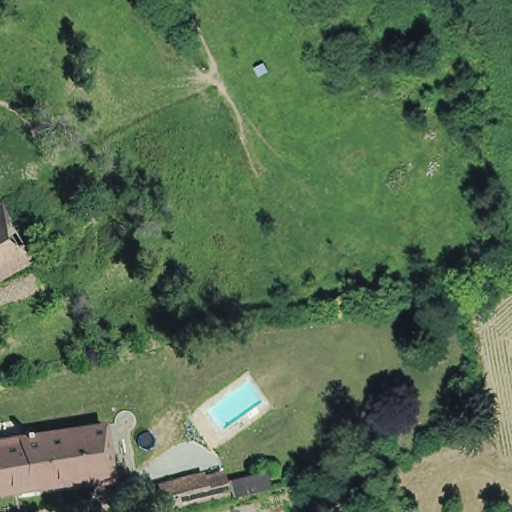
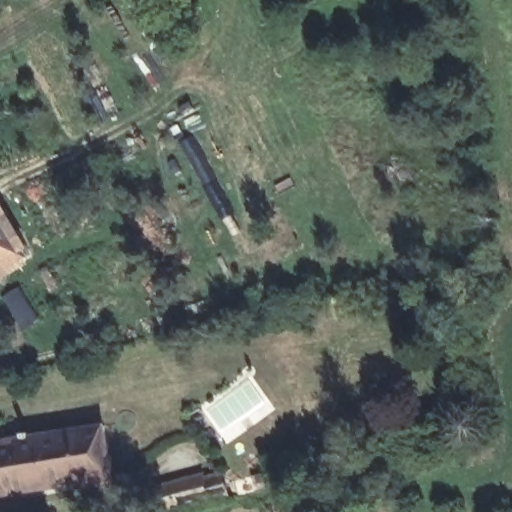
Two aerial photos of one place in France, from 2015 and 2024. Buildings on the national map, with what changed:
unchanged [(0,280),(0,207),(1,206),(31,264),(0,280)]
unchanged [(80,486),(0,501),(0,450),(105,430),(115,480),(116,485),(82,492),(80,486)]
unchanged [(166,479),(210,468),(211,472),(228,467),(233,487),(216,492),(173,505),(166,479)]

